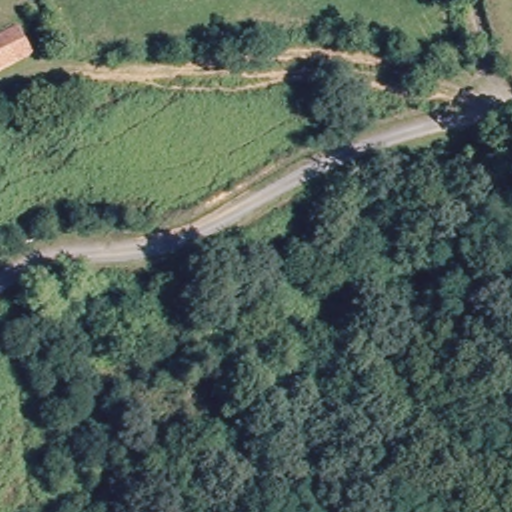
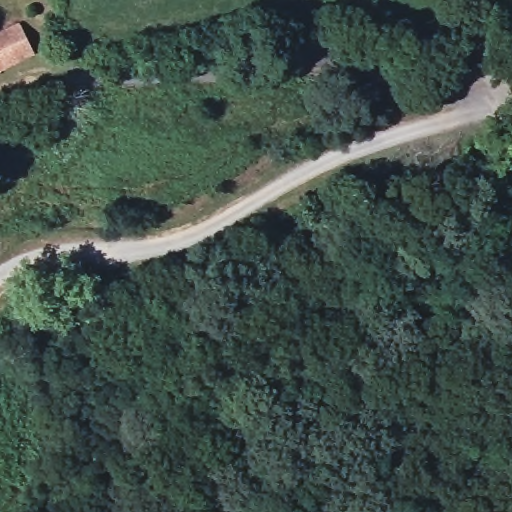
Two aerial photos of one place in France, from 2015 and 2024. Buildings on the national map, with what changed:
unchanged [(11,27),(25,57),(0,69),(0,32),(11,27)]

